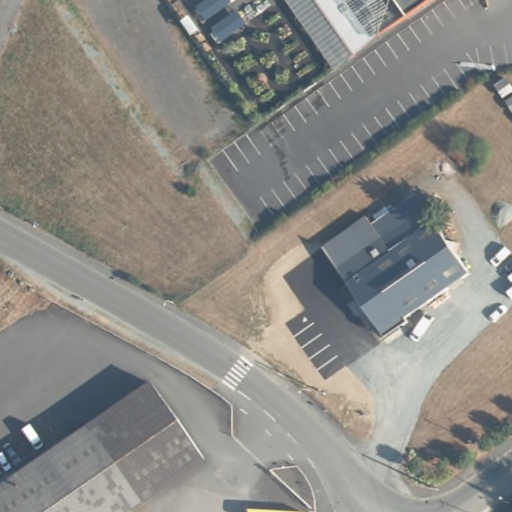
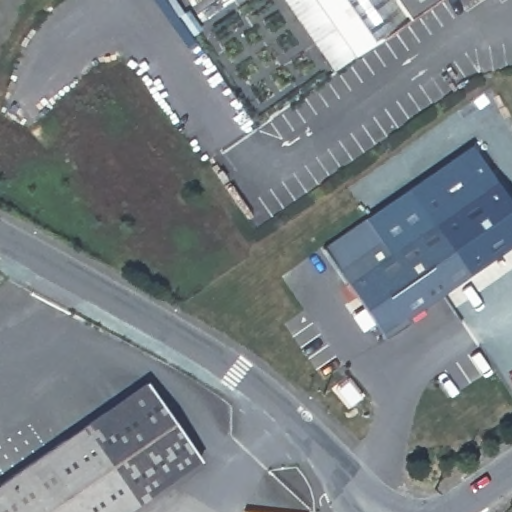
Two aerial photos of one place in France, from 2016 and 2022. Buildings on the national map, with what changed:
new [(335,70),(286,0),(311,0),(353,56),(335,70)]
unchanged [(358,63),(311,0),(375,0),(399,32),(358,63)]
unchanged [(375,0),(441,0),(399,32),(375,0)]
new [(461,240),(449,240),(437,224),(422,201),(386,226),(404,249),(396,254),(372,218),(472,144),(512,200),(512,244),(472,273),(459,255),(461,240)]
unchanged [(386,226),(422,201),(437,224),(404,249),(386,226)]
unchanged [(437,224),(449,240),(461,240),(459,255),(472,273),(390,337),(328,250),(372,218),(396,254),(404,249),(437,224)]
unchanged [(146,380),(199,455),(121,512),(0,512),(0,481),(146,380)]

